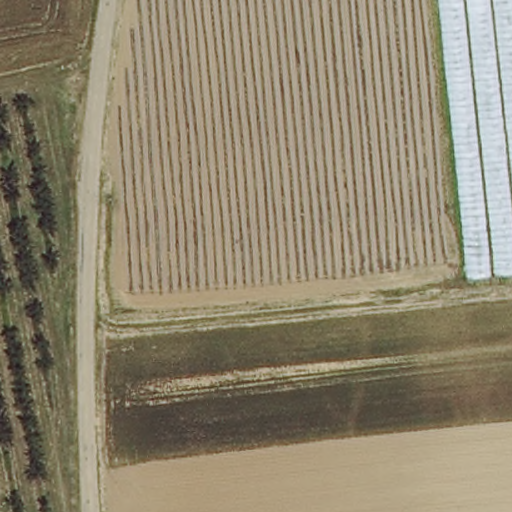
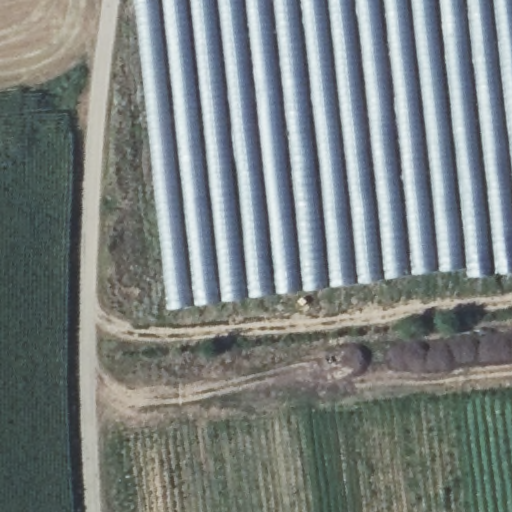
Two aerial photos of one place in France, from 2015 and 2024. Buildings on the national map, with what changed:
new [(470,268),(171,307),(140,0),(441,0),(470,268)]
unchanged [(470,268),(441,0),(512,0),(512,283),(472,287),(470,268)]

